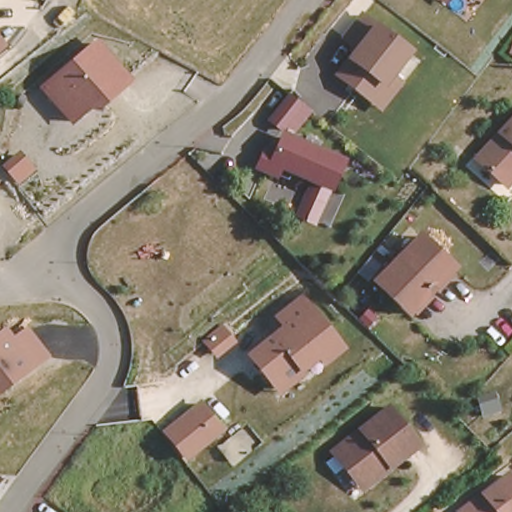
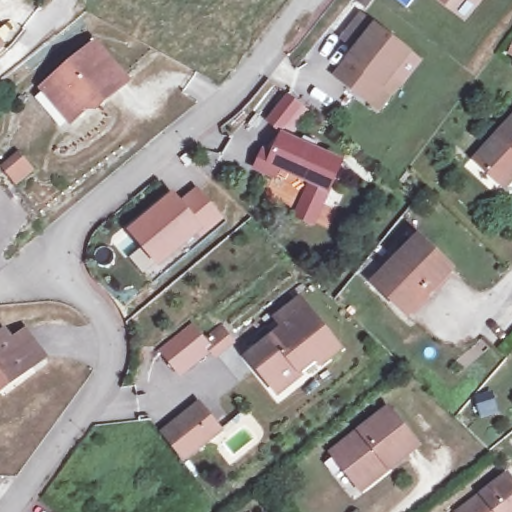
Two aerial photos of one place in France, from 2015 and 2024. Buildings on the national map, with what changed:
unchanged [(447,0),(443,5),(436,0),(447,0)]
unchanged [(378,107),(368,100),(336,76),(357,50),(342,39),(359,16),(405,51),(387,75),(398,82),(378,107)]
unchanged [(0,50),(0,42),(3,47),(0,50)]
unchanged [(93,47),(125,84),(100,105),(97,101),(68,125),(40,92),(93,47)]
unchanged [(310,111),(288,135),(275,123),(296,100),(310,111)]
unchanged [(512,121),(512,177),(505,185),(477,160),(512,121)]
unchanged [(297,219),(307,201),(313,187),(281,171),(277,180),(260,171),(268,156),(278,161),(294,144),(305,150),(309,142),(323,149),(320,156),(345,169),(323,209),(313,227),(297,219)]
new [(128,231),(173,191),(180,199),(197,186),(225,219),(202,239),(198,235),(160,268),(128,231)]
unchanged [(414,238),(447,268),(403,315),(370,286),(414,238)]
unchanged [(278,400),(244,352),(277,328),(268,321),(300,296),(343,350),(278,400)]
new [(187,320),(199,337),(215,325),(225,338),(208,350),(203,343),(173,366),(156,342),(187,320)]
unchanged [(0,392),(0,329),(3,327),(10,337),(25,327),(47,358),(0,392)]
unchanged [(186,465),(158,432),(202,398),(225,432),(186,465)]
unchanged [(333,458),(395,412),(426,453),(395,477),(388,469),(360,491),(333,458)]
unchanged [(508,470),(512,475),(512,512),(453,512),(508,470)]

